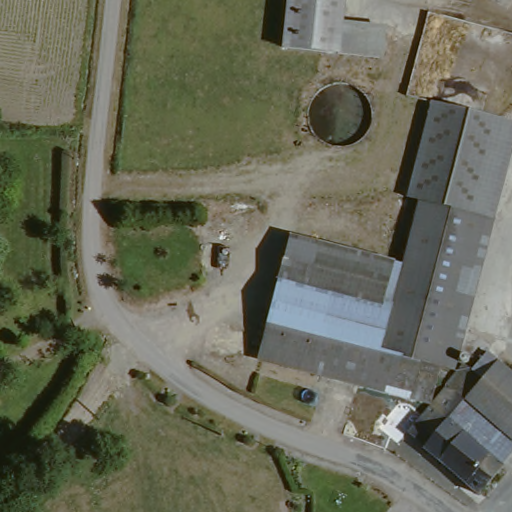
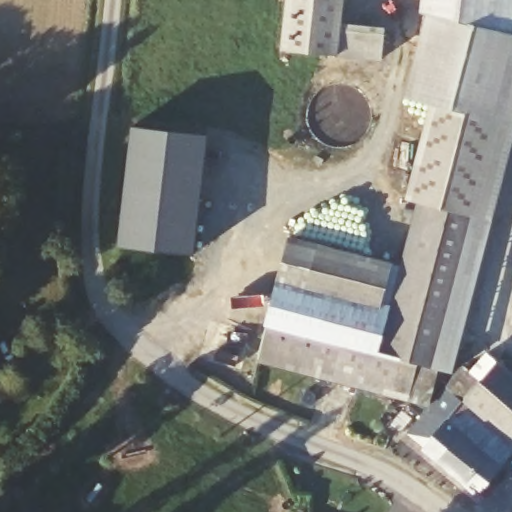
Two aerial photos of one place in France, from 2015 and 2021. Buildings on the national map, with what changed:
unchanged [(347,0),(345,25),(385,27),(383,60),(283,52),(288,0),(347,0)]
new [(405,98),(430,11),(512,33),(512,126),(427,105),(405,98)]
unchanged [(425,104),(512,126),(512,133),(491,218),(416,202),(401,199),(425,104)]
new [(132,136),(207,144),(194,264),(119,256),(132,136)]
unchanged [(402,442),(416,423),(407,419),(377,415),(380,396),(254,366),(283,241),(398,266),(416,202),(491,218),(456,353),(464,372),(483,355),(512,383),(512,445),(512,457),(474,498),(402,442)]
unchanged [(109,428),(109,438),(96,437),(96,428),(109,428)]

